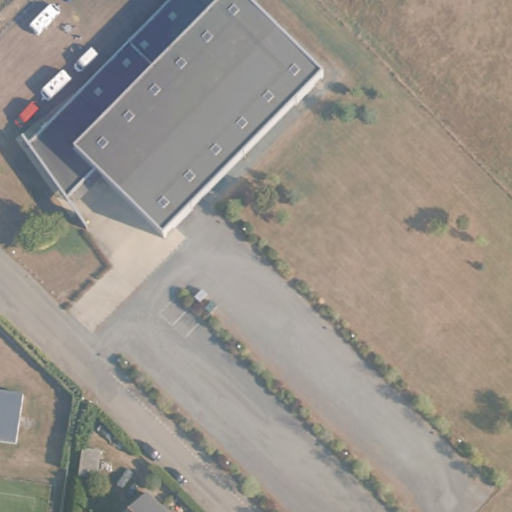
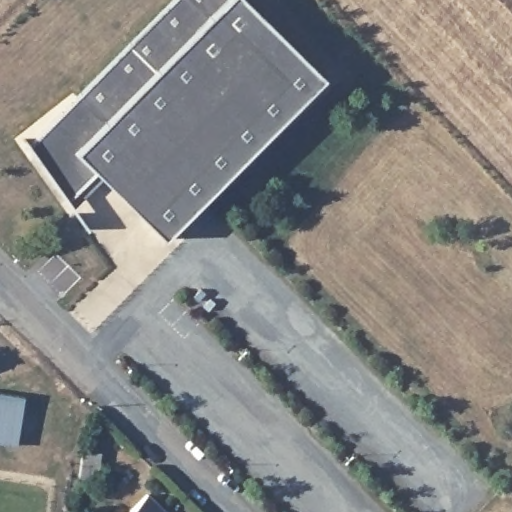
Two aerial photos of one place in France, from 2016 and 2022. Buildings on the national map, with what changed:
unchanged [(248,0),(322,75),(162,239),(93,172),(65,201),(27,145),(169,0),(248,0)]
unchanged [(24,394),(17,443),(0,441),(0,391),(24,394)]
unchanged [(159,512),(122,512),(140,494),(159,512)]

